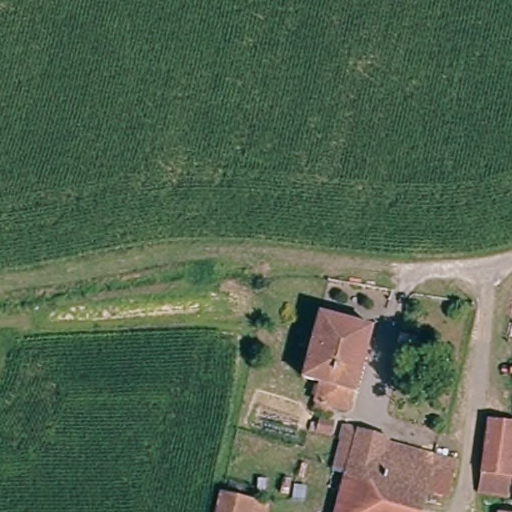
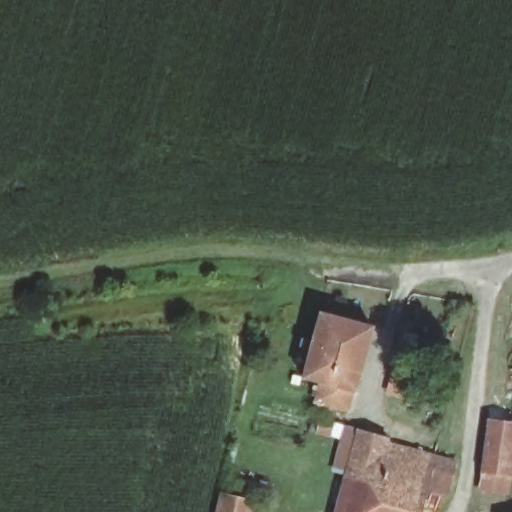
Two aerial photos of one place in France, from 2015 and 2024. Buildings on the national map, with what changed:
unchanged [(310,423),(315,407),(318,388),(297,382),(305,351),(292,348),(295,336),(307,340),(315,313),(368,328),(350,399),(345,397),(342,415),(326,412),(322,426),(310,423)]
unchanged [(479,491),(481,471),(488,420),(512,424),(512,451),(509,475),(506,495),(479,491)]
unchanged [(423,493),(419,512),(334,512),(345,472),(332,469),(340,429),(383,440),(383,446),(453,462),(447,486),(444,499),(423,493)]
unchanged [(263,506),(262,512),(213,512),(217,492),(245,501),(263,506)]

